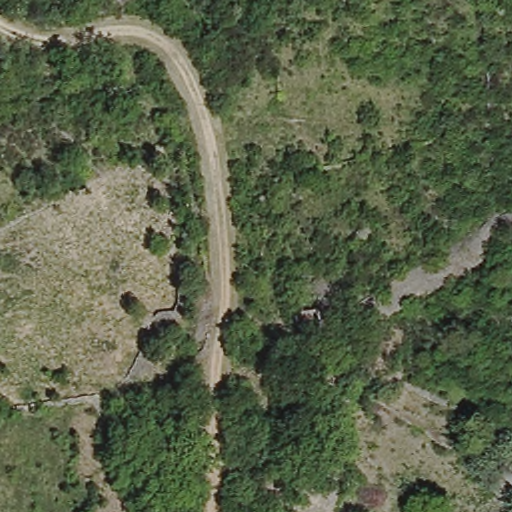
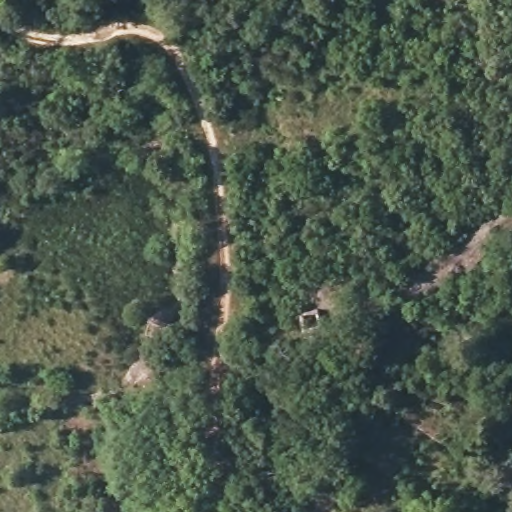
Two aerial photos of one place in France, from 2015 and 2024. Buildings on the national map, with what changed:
unchanged [(167,167),(162,151),(183,141),(185,161),(167,167)]
unchanged [(295,315),(311,311),(316,335),(300,336),(295,315)]
unchanged [(512,452),(512,496),(487,471),(512,452)]

